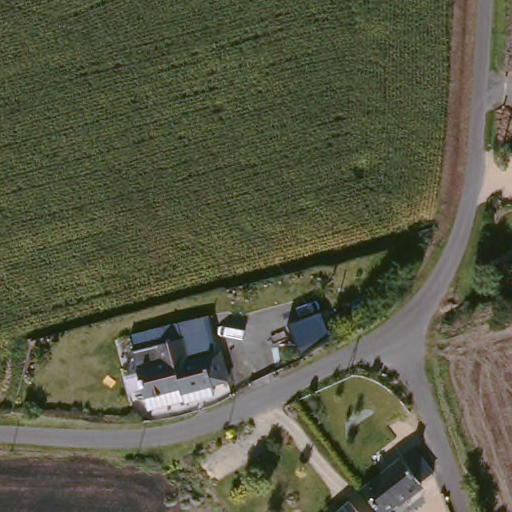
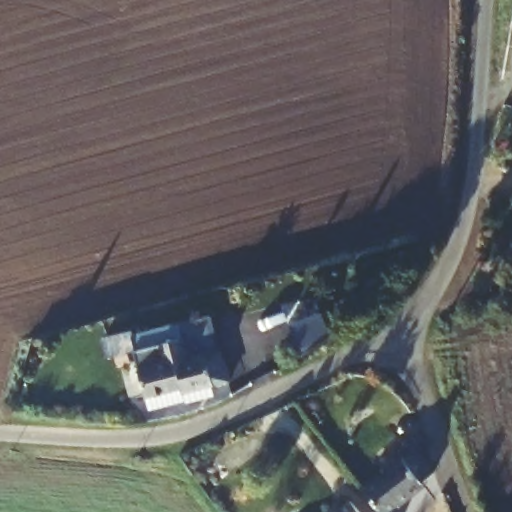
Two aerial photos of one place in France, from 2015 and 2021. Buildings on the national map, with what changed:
unchanged [(144,374),(143,350),(143,344),(166,344),(166,340),(164,325),(197,325),(197,340),(197,350),(210,350),(212,350),(229,350),(229,378),(229,387),(145,385),(144,374)]
unchanged [(364,489),(413,446),(421,456),(434,470),(422,480),(423,482),(413,491),(416,496),(404,508),(399,503),(388,512),(383,512),(371,497),(366,491),(364,489)]
unchanged [(367,512),(348,512),(359,502),(367,512)]

